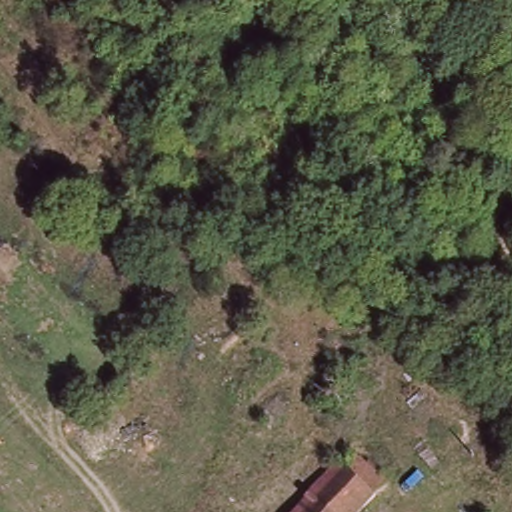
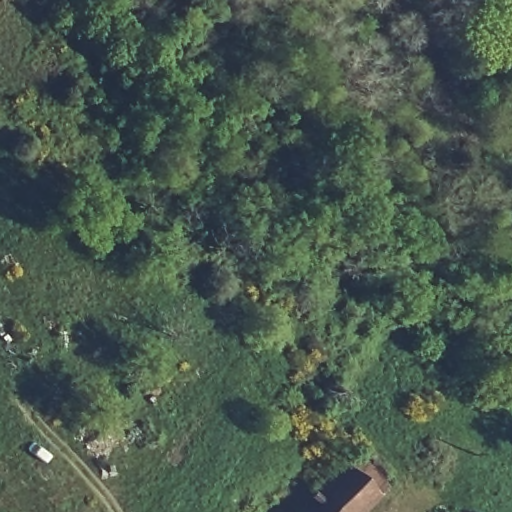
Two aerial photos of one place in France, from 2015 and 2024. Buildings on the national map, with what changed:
unchanged [(391,483),(364,512),(297,512),(344,463),(349,468),(361,455),(391,483)]

